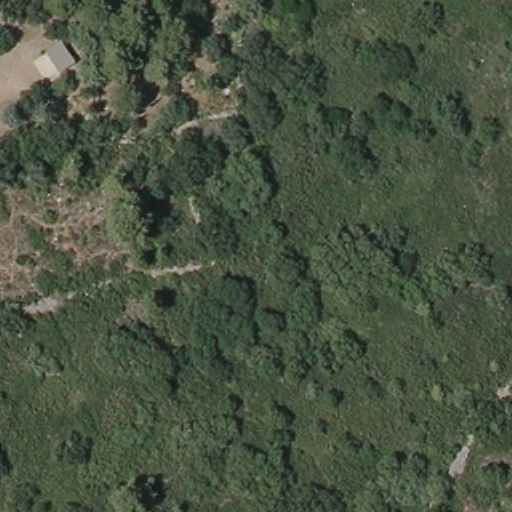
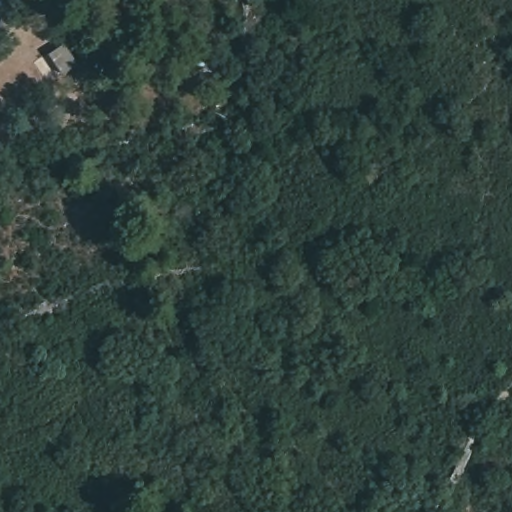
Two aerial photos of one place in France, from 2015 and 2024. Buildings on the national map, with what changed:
unchanged [(56,77),(42,57),(57,47),(70,68),(56,77)]

